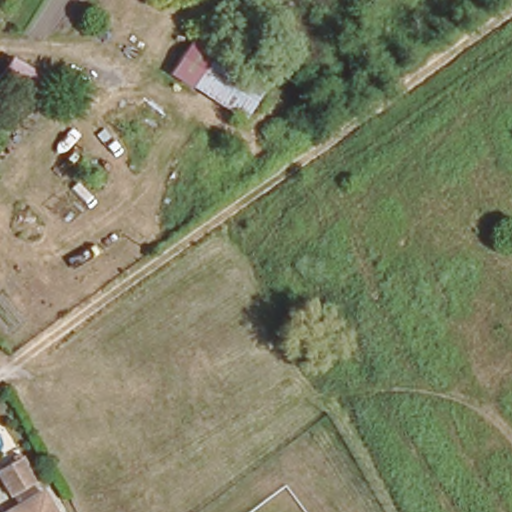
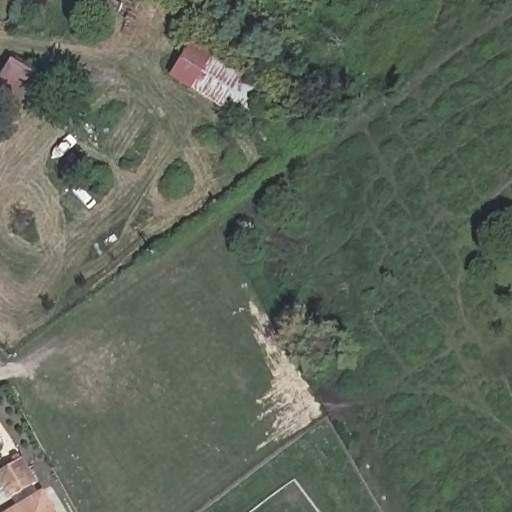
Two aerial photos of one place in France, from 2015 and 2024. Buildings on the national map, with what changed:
unchanged [(269,82),(250,114),(172,67),(191,36),(269,82)]
unchanged [(24,112),(0,97),(0,88),(16,62),(45,82),(24,112)]
unchanged [(0,495),(0,475),(24,461),(40,489),(8,508),(0,495)]
unchanged [(48,497),(57,512),(22,512),(48,497)]

